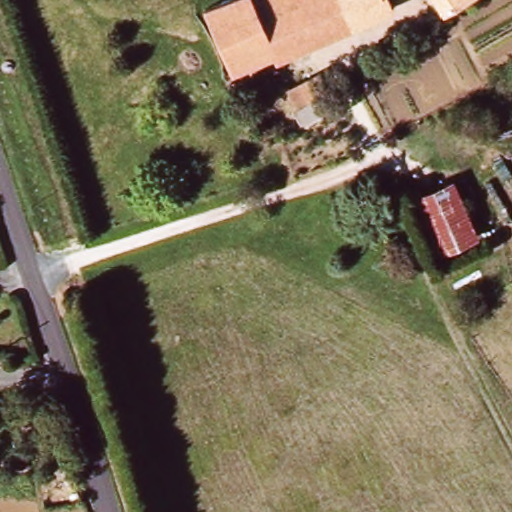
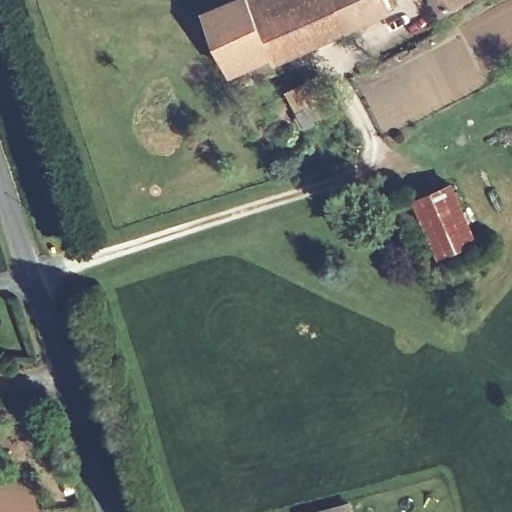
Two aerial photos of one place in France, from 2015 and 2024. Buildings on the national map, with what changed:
unchanged [(236,0),(398,0),(400,7),(285,57),(281,52),(242,69),(216,7),(236,0)]
unchanged [(453,14),(444,0),(472,0),(474,3),(453,14)]
unchanged [(320,76),(325,92),(296,105),(289,91),(320,76)]
unchanged [(462,183),(485,239),(450,252),(426,197),(462,183)]
new [(351,502),(354,512),(313,512),(334,507),(351,502)]

